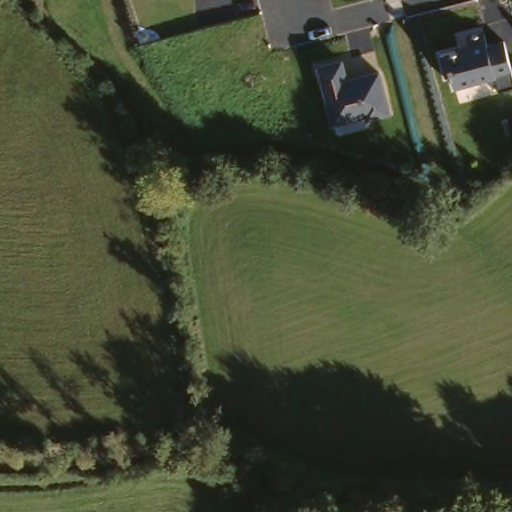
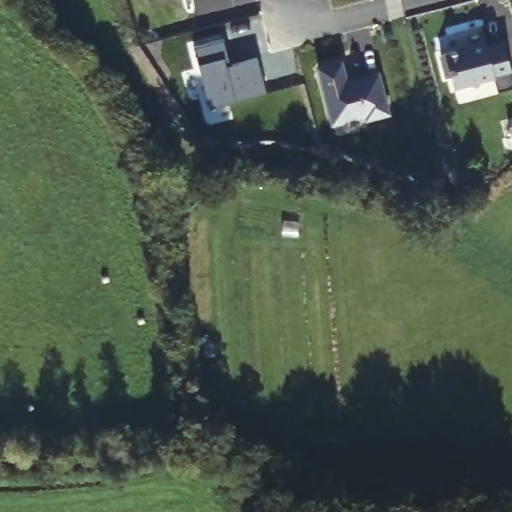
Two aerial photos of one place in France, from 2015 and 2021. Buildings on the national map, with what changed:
unchanged [(464,38),(484,34),(486,46),(504,42),(512,77),(512,83),(497,88),(494,78),(454,87),(439,51),(466,44),(464,38)]
new [(227,37),(231,55),(227,56),(229,64),(259,56),(269,91),(211,106),(196,44),(227,37)]
unchanged [(377,72),(386,111),(361,117),(359,114),(331,120),(322,87),(377,72)]

